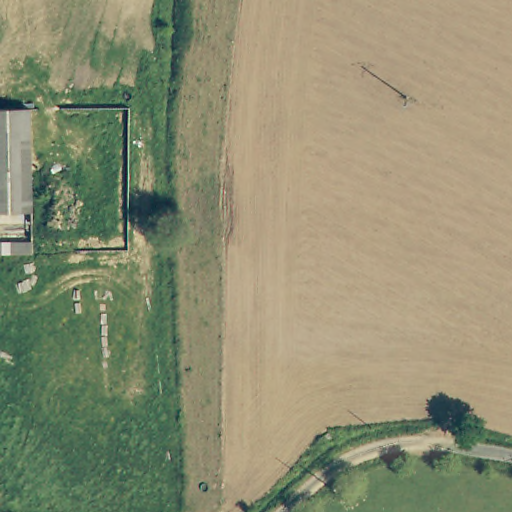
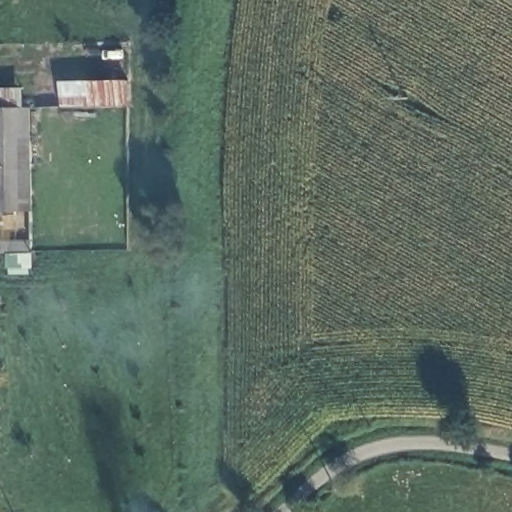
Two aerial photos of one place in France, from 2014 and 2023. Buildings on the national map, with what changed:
unchanged [(32,209),(0,208),(0,109),(34,110),(32,209)]
unchanged [(41,250),(0,249),(0,234),(41,234),(41,250)]

